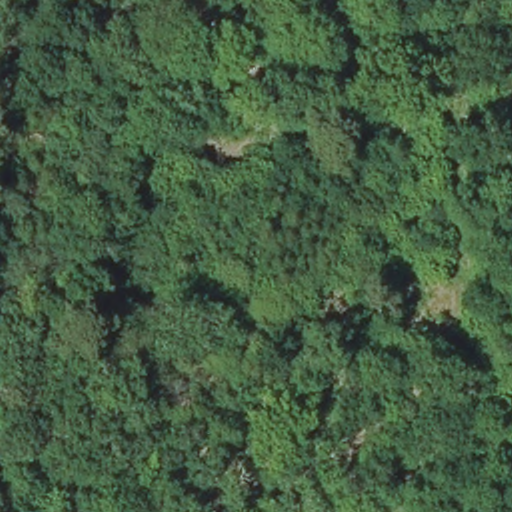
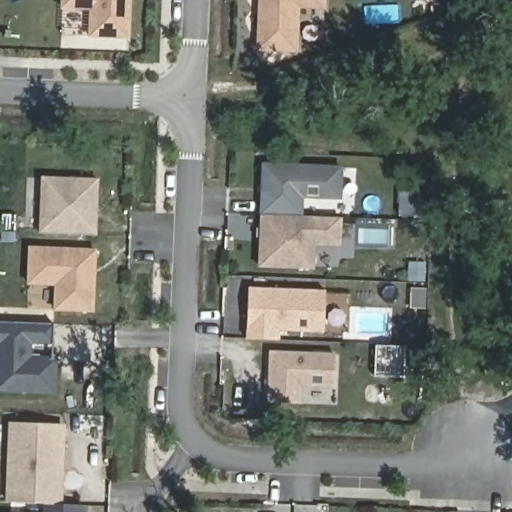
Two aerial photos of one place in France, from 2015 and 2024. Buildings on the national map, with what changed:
new [(131,0),(129,36),(92,35),(93,7),(65,6),(65,0),(131,0)]
new [(260,48),(262,0),(326,0),(326,7),(299,7),(298,48),(260,48)]
new [(265,215),(267,164),(342,168),(340,197),(301,196),(301,216),(265,215)]
new [(46,177),(102,179),(100,235),(44,233),(46,177)]
new [(314,269),(260,267),(261,215),(265,215),(301,216),(343,217),(342,247),(316,246),(314,269)]
new [(34,249),(99,252),(96,312),(59,311),(60,286),(33,284),(34,249)]
new [(327,332),(282,331),(281,340),(248,338),(251,288),(282,289),(282,300),(293,301),(293,290),(328,291),(327,332)]
new [(56,344),(33,343),(32,359),(58,361),(57,394),(0,392),(0,356),(1,346),(0,346),(0,324),(56,326),(56,344)]
new [(304,387),(303,403),(268,402),(270,351),(336,353),(336,388),(304,387)]
new [(16,424),(67,427),(64,504),(51,504),(12,502),(16,424)]
new [(51,504),(64,504),(84,505),(84,512),(50,512),(51,504)]

